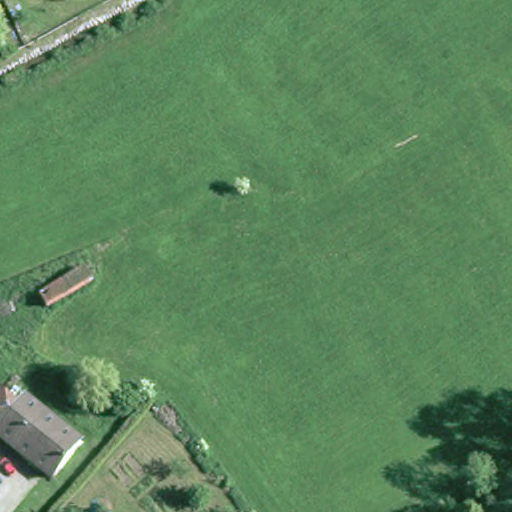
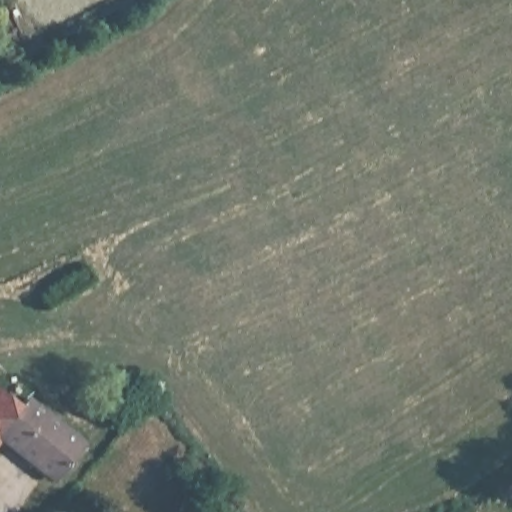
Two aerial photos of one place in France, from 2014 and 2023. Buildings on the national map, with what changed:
unchanged [(30,356),(51,379),(26,402),(72,453),(37,484),(2,446),(0,448),(0,383),(25,361),(30,356)]

